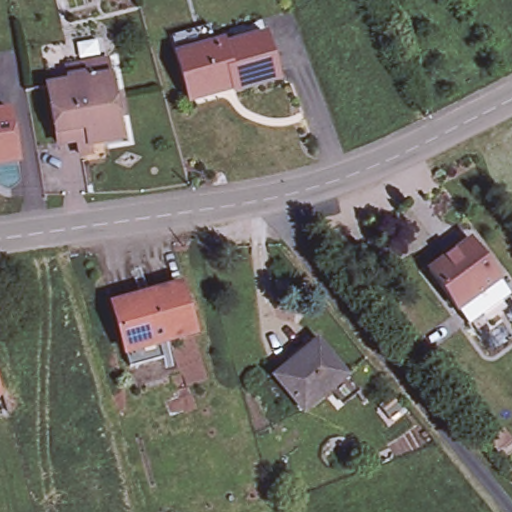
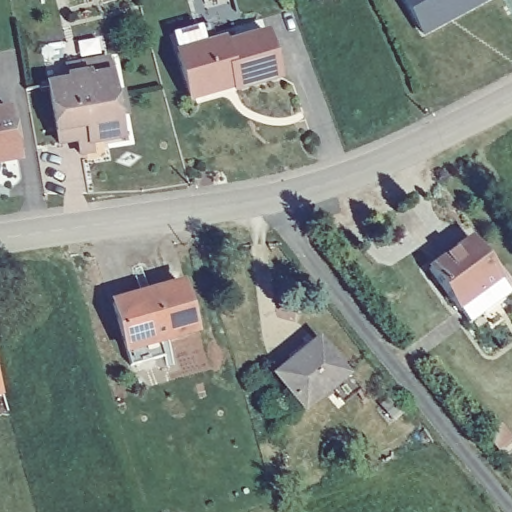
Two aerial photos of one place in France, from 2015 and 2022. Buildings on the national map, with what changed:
new [(400,0),(487,0),(421,37),(400,0)]
unchanged [(241,93),(225,97),(226,101),(198,109),(185,61),(180,43),(218,32),(223,51),(232,49),(233,54),(265,44),(274,42),(287,87),(281,89),(243,100),(241,93)]
unchanged [(118,94),(126,92),(130,114),(123,115),(126,135),(92,141),(91,137),(65,142),(55,84),(75,80),(73,65),(112,59),(115,74),(118,94)]
unchanged [(7,115),(15,165),(0,168),(0,116),(7,115)]
unchanged [(501,287),(462,316),(422,262),(461,232),(501,287)]
unchanged [(127,365),(123,350),(110,302),(151,290),(152,293),(180,285),(194,330),(157,341),(162,355),(127,365)]
unchanged [(345,372),(302,407),(273,373),(315,338),(345,372)]

